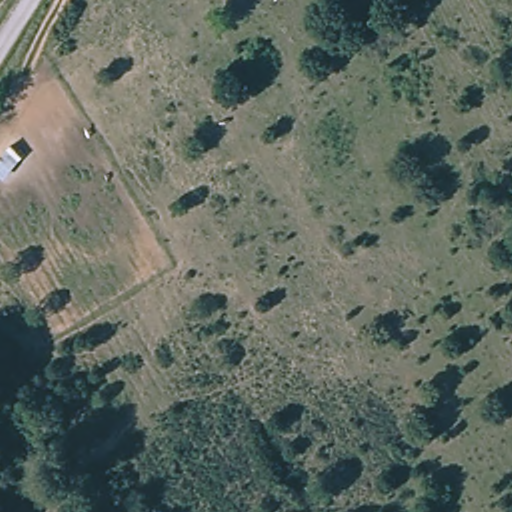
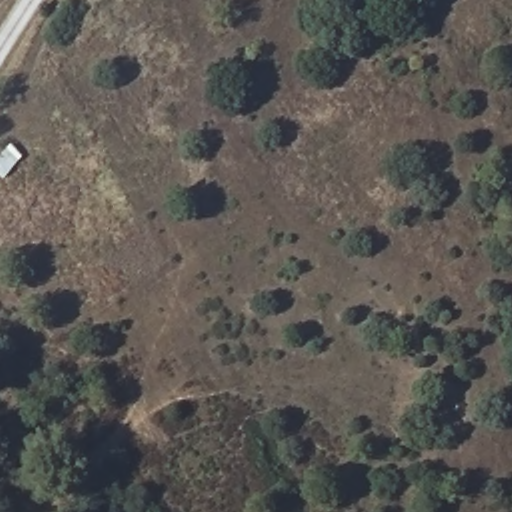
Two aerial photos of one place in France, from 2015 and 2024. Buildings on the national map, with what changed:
unchanged [(0,155),(12,143),(21,152),(8,166),(0,158),(0,155)]

